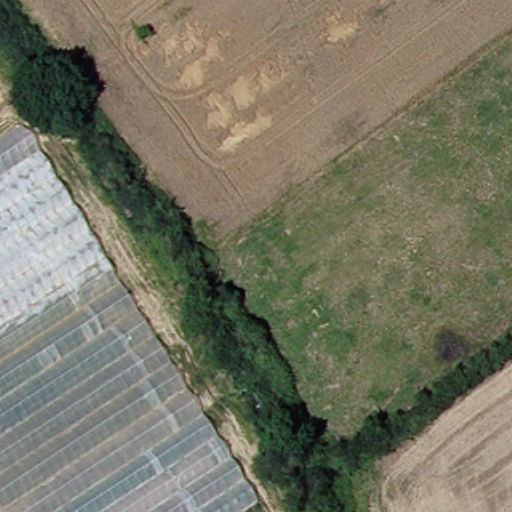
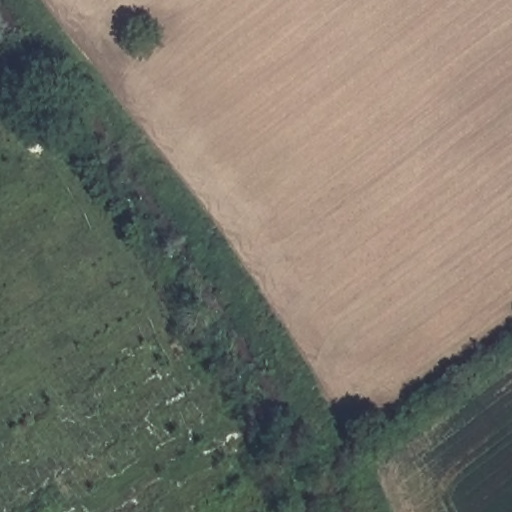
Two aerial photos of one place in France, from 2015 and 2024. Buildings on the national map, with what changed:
new [(268,512),(0,512),(0,145),(23,130),(268,512)]

